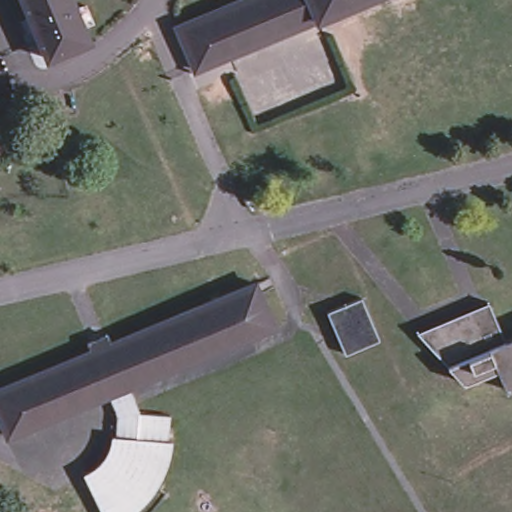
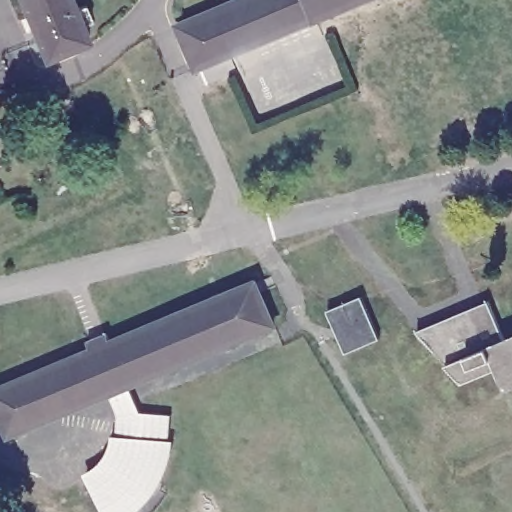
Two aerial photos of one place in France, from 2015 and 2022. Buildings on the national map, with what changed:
unchanged [(90,43),(48,61),(23,0),(72,0),(90,43)]
unchanged [(198,69),(180,25),(181,25),(239,0),(364,0),(198,69)]
unchanged [(130,386),(112,394),(10,436),(0,411),(0,388),(93,350),(90,341),(108,332),(113,341),(258,281),(276,325),(130,386)]
unchanged [(380,341),(348,354),(330,312),(363,298),(380,341)]
unchanged [(418,328),(490,298),(506,337),(512,334),(512,384),(508,386),(498,364),(464,378),(448,361),(418,328)]
unchanged [(172,416),(172,425),(172,435),(171,443),(175,444),(172,450),(170,459),(167,468),(163,476),(160,484),(154,493),(148,500),(141,507),(135,512),(106,512),(88,476),(95,472),(102,465),(108,458),(113,450),(116,441),(117,438),(120,438),(120,434),(121,429),(120,425),(120,414),(119,408),(116,402),(115,397),(112,394),(130,386),(141,412),(172,416)]

